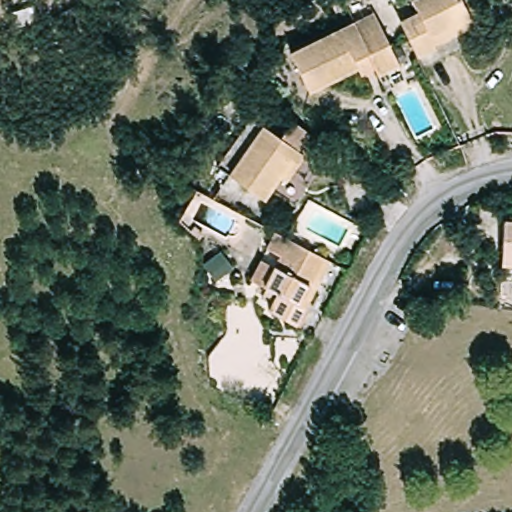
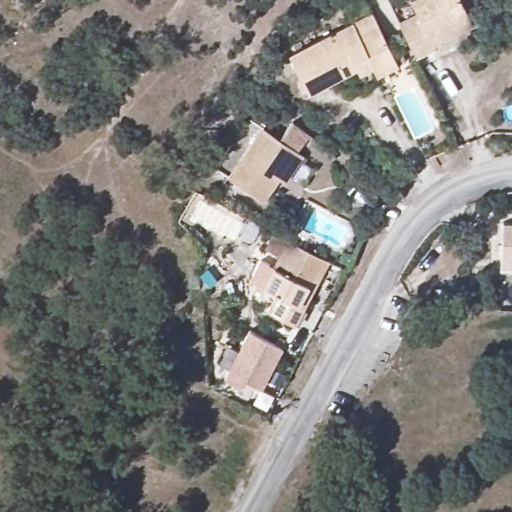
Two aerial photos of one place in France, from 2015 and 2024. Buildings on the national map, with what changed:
unchanged [(413,6),(426,0),(460,0),(470,23),(429,42),(434,53),(415,63),(398,25),(417,17),(413,6)]
unchanged [(355,66),(303,90),(286,52),(350,23),(370,14),(375,25),(394,66),(375,75),(372,67),(358,74),(355,66)]
unchanged [(278,190),(273,185),(254,208),(210,171),(249,126),(276,148),(289,133),(305,147),(293,161),(299,166),(278,190)]
unchanged [(512,265),(493,262),(500,219),(512,221),(512,265)]
unchanged [(325,266),(298,311),(306,315),(298,330),(272,315),(279,302),(263,292),(289,246),(325,266)]
new [(263,388),(246,379),(243,386),(225,376),(249,330),(284,349),(263,388)]

